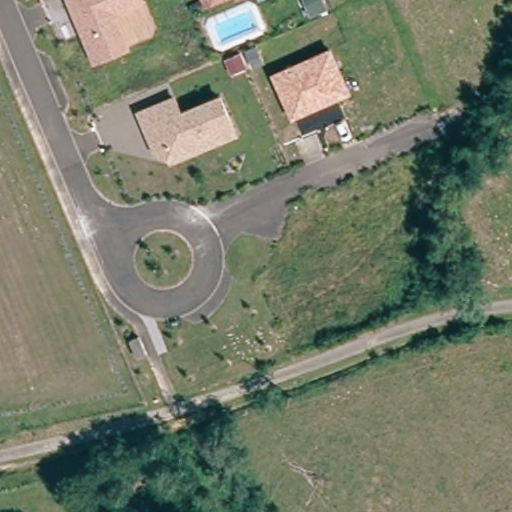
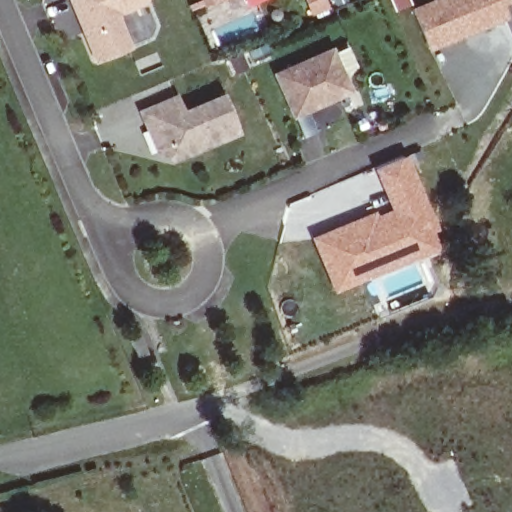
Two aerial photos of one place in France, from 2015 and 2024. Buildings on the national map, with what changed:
unchanged [(73,0),(146,0),(116,13),(130,46),(99,59),(86,32),(78,12),(73,0)]
unchanged [(207,2),(207,0),(212,0),(207,2)]
unchanged [(327,10),(314,16),(307,0),(323,0),(327,10)]
demolished [(331,1),(331,0),(332,0),(331,1)]
new [(512,1),(501,6),(507,19),(430,52),(410,7),(429,0),(512,0),(512,1)]
demolished [(263,55),(250,61),(244,47),(258,41),(263,55)]
unchanged [(332,49),(350,92),(294,116),(275,74),(332,49)]
unchanged [(247,70),(234,76),(227,62),(241,56),(247,70)]
unchanged [(151,129),(144,111),(177,96),(185,112),(224,96),(240,131),(175,159),(161,151),(151,129)]
new [(357,216),(360,221),(389,209),(372,170),(405,156),(407,159),(409,157),(415,177),(437,229),(431,232),(437,249),(332,293),(309,237),(357,216)]

